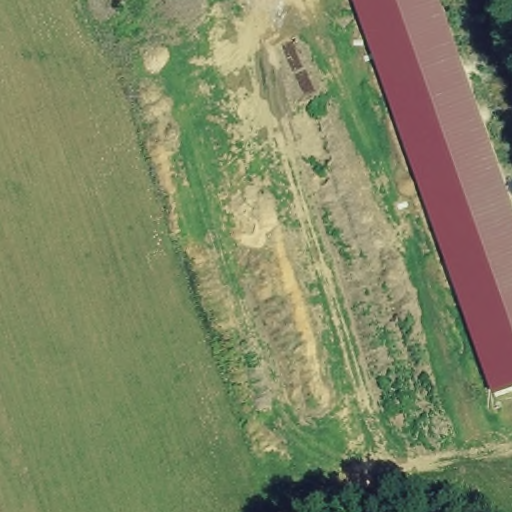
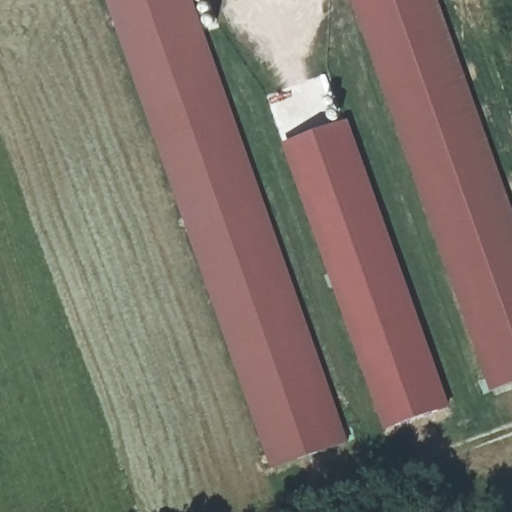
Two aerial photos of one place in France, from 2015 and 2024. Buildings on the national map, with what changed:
new [(271,470),(106,0),(193,0),(349,442),(271,470)]
unchanged [(512,207),(512,385),(493,392),(353,0),(439,0),(512,207)]
new [(384,431),(281,145),(348,121),(451,407),(384,431)]

